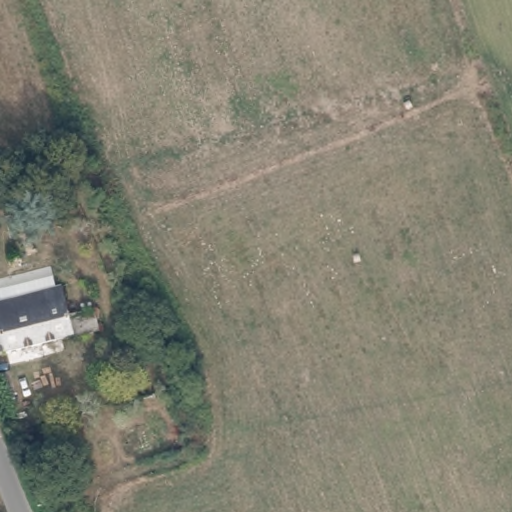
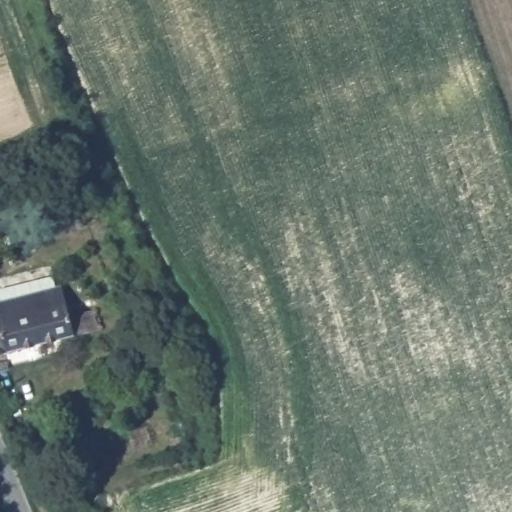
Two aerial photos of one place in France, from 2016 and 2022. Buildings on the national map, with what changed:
unchanged [(55,288),(63,317),(87,311),(94,330),(57,341),(58,350),(8,364),(2,356),(0,357),(0,303),(55,288)]

